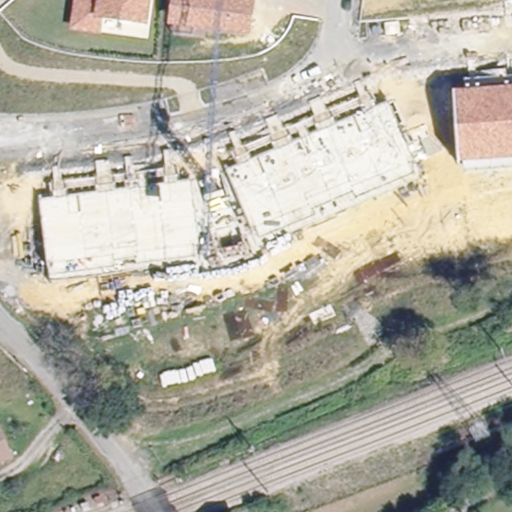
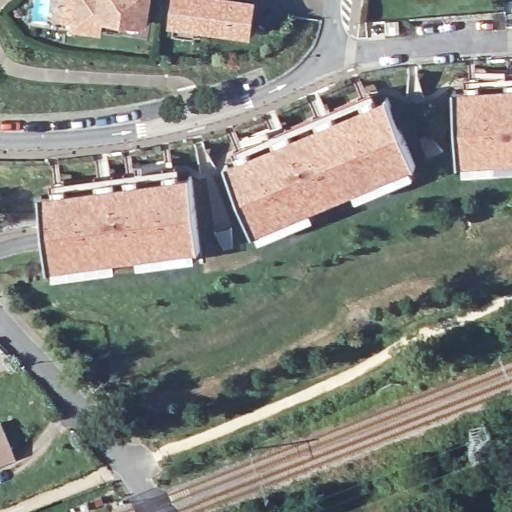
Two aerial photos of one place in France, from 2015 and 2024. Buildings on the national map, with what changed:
unchanged [(147,26),(102,20),(102,33),(72,30),(75,0),(151,0),(147,26)]
unchanged [(252,37),(195,30),(194,37),(173,34),(174,26),(169,26),(172,0),(256,0),(252,37)]
unchanged [(512,160),(460,164),(454,91),(512,88),(512,160)]
new [(254,233),(225,164),(386,98),(414,164),(254,233)]
new [(51,268),(40,195),(189,175),(199,248),(51,268)]
unchanged [(1,427),(11,458),(0,462),(0,428),(1,427)]

